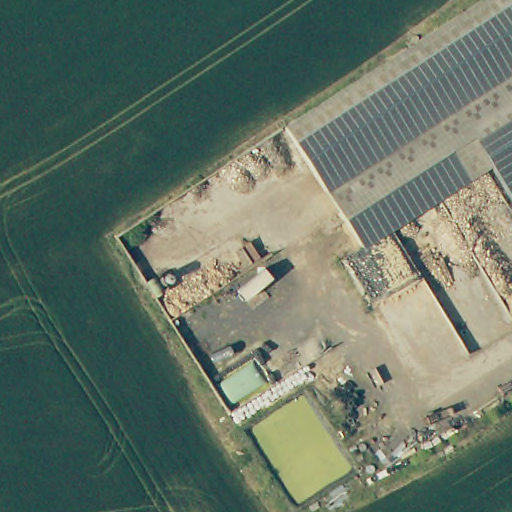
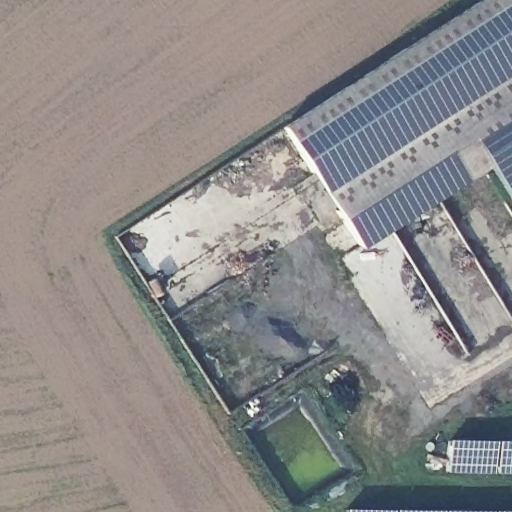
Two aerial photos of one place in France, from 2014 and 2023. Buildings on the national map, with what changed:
unchanged [(463,86),(427,32),(474,0),(512,0),(512,139),(463,86)]
unchanged [(489,167),(362,247),(285,126),(427,32),(463,86),(512,139),(512,203),(489,167)]
new [(451,441),(496,442),(494,472),(449,471),(451,441)]
new [(500,442),(512,442),(512,473),(499,472),(500,442)]
new [(393,511),(392,512),(347,512),(348,510),(393,511)]
new [(442,512),(397,512),(397,511),(442,512)]

